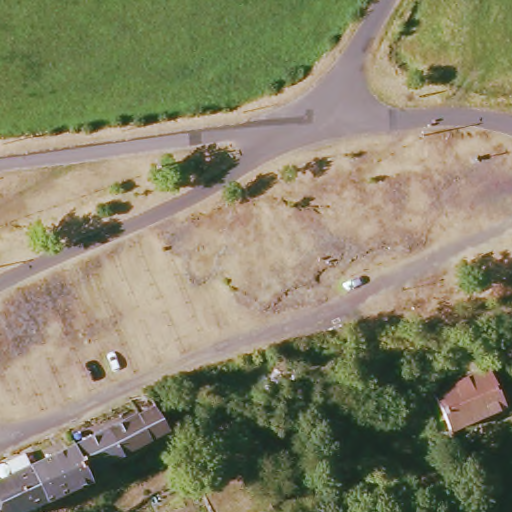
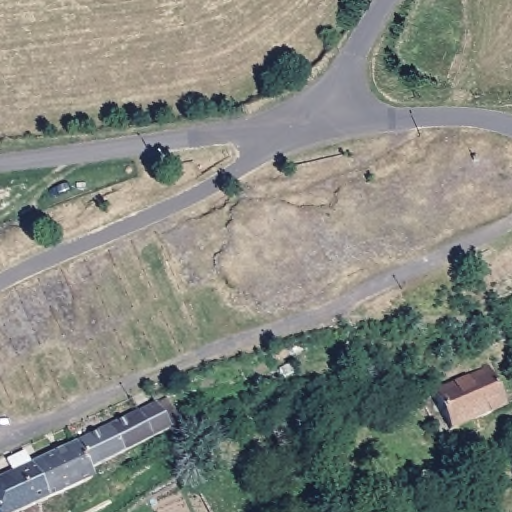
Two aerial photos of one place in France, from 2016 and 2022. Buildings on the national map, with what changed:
unchanged [(507,343),(494,348),(488,332),(500,327),(507,343)]
unchanged [(502,410),(452,432),(437,391),(492,369),(506,405),(502,410)]
unchanged [(163,407),(174,429),(162,435),(163,437),(121,458),(108,432),(148,413),(150,414),(163,407)]
unchanged [(121,458),(83,477),(70,450),(108,432),(121,458)]
unchanged [(83,477),(87,486),(50,502),(34,467),(70,450),(83,477)]
unchanged [(50,502),(41,506),(27,512),(23,512),(8,479),(2,467),(20,458),(26,470),(34,467),(50,502)]
unchanged [(0,482),(8,479),(23,512),(0,512),(0,482)]

